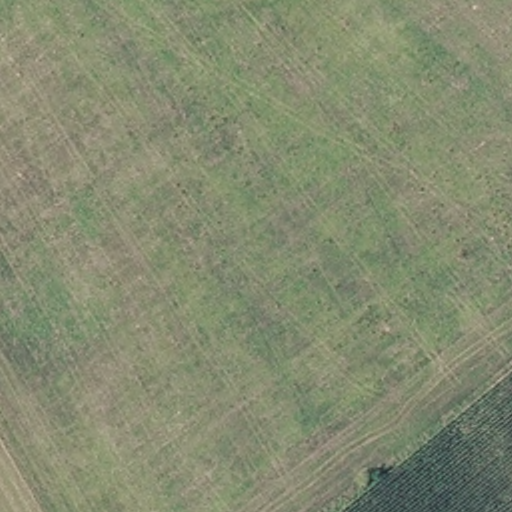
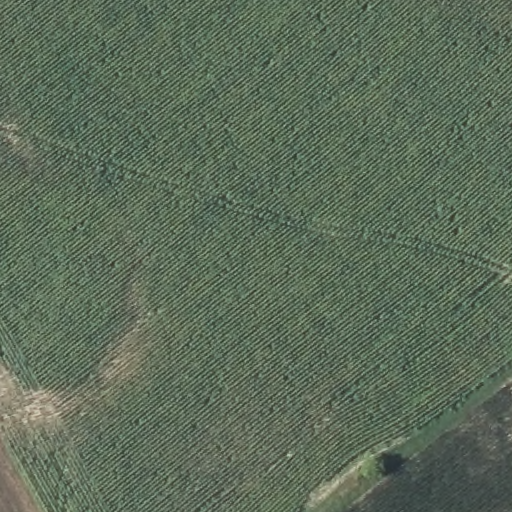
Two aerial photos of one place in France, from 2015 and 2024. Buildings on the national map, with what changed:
[]

